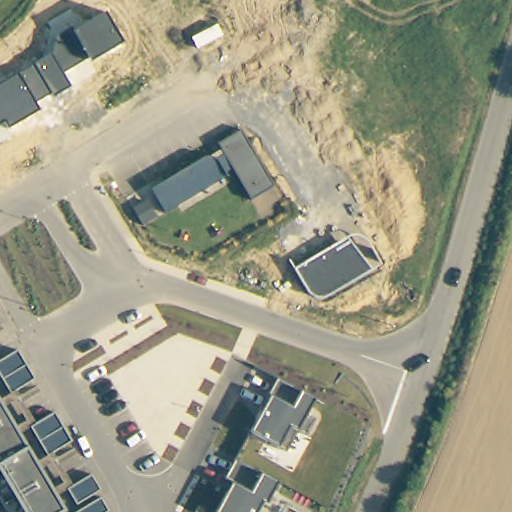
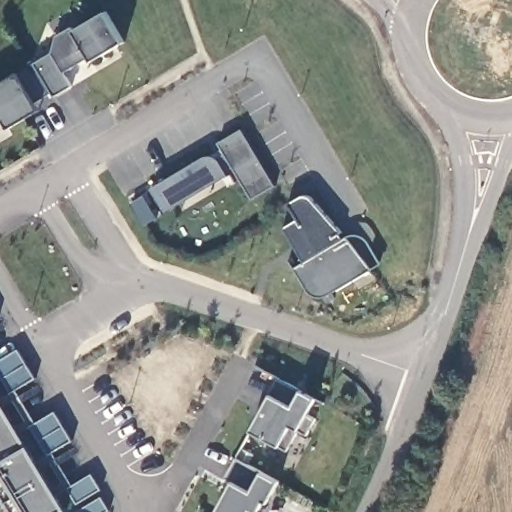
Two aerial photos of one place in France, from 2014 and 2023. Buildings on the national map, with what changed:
unchanged [(20,74),(53,53),(58,36),(73,28),(76,33),(106,14),(123,43),(92,62),(89,59),(64,74),(72,87),(55,99),(51,94),(35,104),(40,111),(8,129),(4,122),(0,124),(0,86),(20,74)]
unchanged [(252,200),(234,173),(165,212),(152,189),(221,151),(218,145),(240,131),(274,187),(252,200)]
new [(284,227),(300,219),(293,205),(304,196),(312,199),(347,239),(306,262),(284,227)]
unchanged [(328,297),(323,298),(316,297),(310,293),(306,290),(301,282),(294,269),(347,239),(372,271),(328,297)]
unchanged [(0,373),(0,362),(18,352),(35,380),(12,395),(0,373)]
unchanged [(253,431),(270,397),(278,381),(301,392),(315,399),(307,415),(315,418),(306,436),(297,431),(287,452),(253,431)]
unchanged [(29,449),(66,512),(8,512),(0,498),(0,400),(29,449)]
unchanged [(31,427),(55,413),(72,442),(49,456),(31,427)]
unchanged [(227,477),(237,459),(262,475),(278,483),(268,505),(263,502),(258,512),(217,512),(233,482),(227,477)]
unchanged [(69,489),(91,476),(100,491),(77,505),(69,489)]
unchanged [(109,512),(80,512),(101,499),(109,512)]

